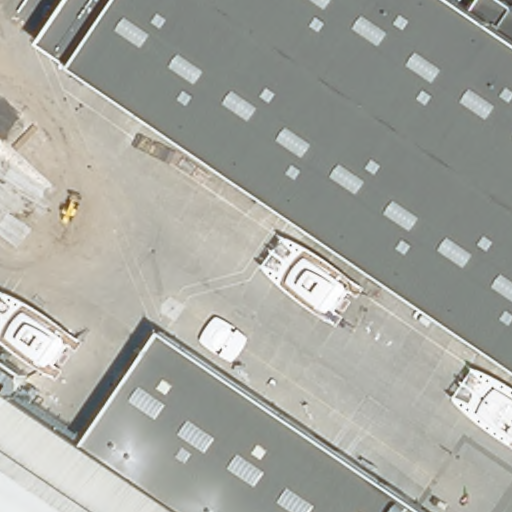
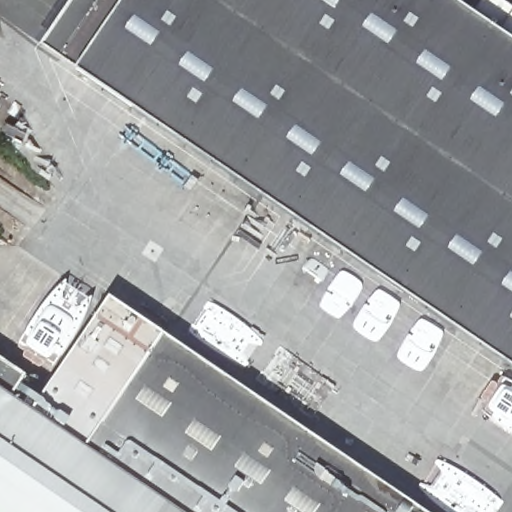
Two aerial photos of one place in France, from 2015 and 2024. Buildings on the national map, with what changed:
unchanged [(502,31),(512,18),(512,362),(77,66),(43,44),(72,0),(456,0),(502,31)]
new [(164,331),(86,448),(33,412),(112,297),(164,331)]
unchanged [(27,371),(11,398),(86,448),(164,331),(429,512),(0,512),(0,354),(27,371)]

